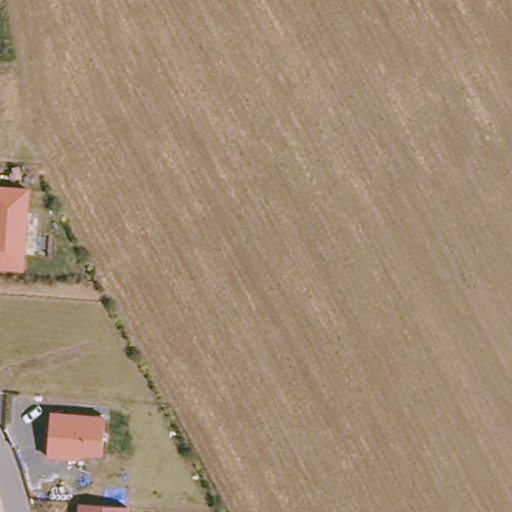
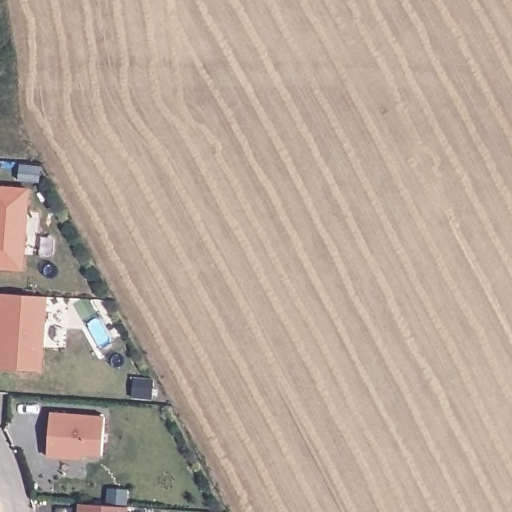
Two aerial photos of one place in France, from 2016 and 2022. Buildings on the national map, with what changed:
unchanged [(30,189),(25,271),(0,270),(0,186),(30,189)]
new [(2,336),(2,330),(0,327),(0,313),(2,294),(45,297),(41,370),(0,368),(0,336),(2,336)]
unchanged [(50,412),(105,417),(101,456),(85,455),(80,459),(47,458),(50,412)]
unchanged [(78,504),(129,508),(129,512),(78,512),(78,504)]

